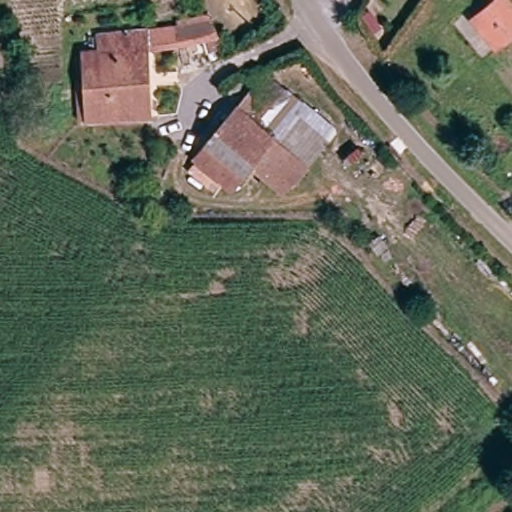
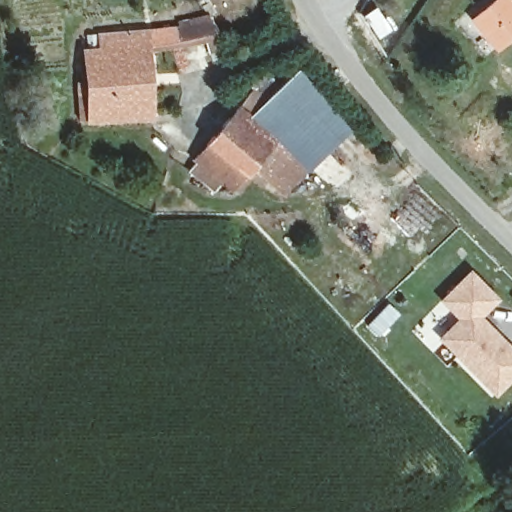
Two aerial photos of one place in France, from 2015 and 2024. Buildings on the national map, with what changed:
unchanged [(512,2),(512,38),(498,50),(473,19),(497,0),(510,0),(512,2)]
unchanged [(148,26),(215,15),(220,40),(145,47),(97,49),(97,26),(148,26)]
unchanged [(82,50),(97,49),(145,47),(147,120),(83,120),(82,50)]
unchanged [(250,82),(264,93),(252,112),(275,130),(249,165),(230,187),(194,158),(237,101),(250,82)]
unchanged [(275,130),(300,100),(330,127),(327,143),(283,196),(249,165),(275,130)]
new [(499,299),(481,316),(512,346),(512,380),(495,397),(436,338),(457,317),(438,300),(470,269),(499,299)]

